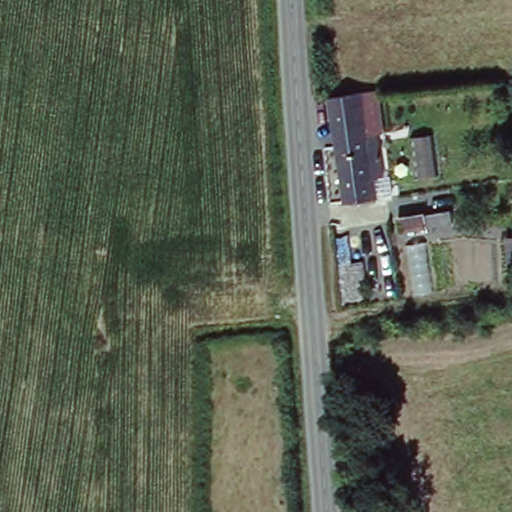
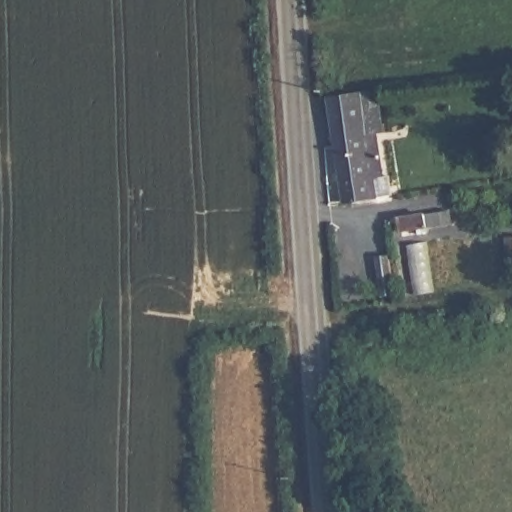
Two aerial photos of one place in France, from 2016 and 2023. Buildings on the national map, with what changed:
unchanged [(322,100),(371,93),(379,131),(369,133),(374,176),(364,177),(368,202),(335,207),(322,100)]

